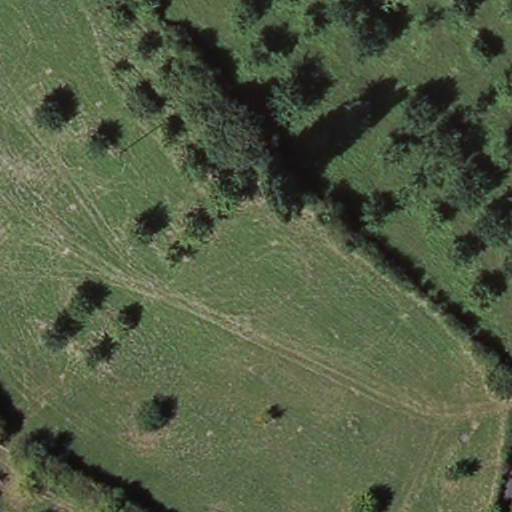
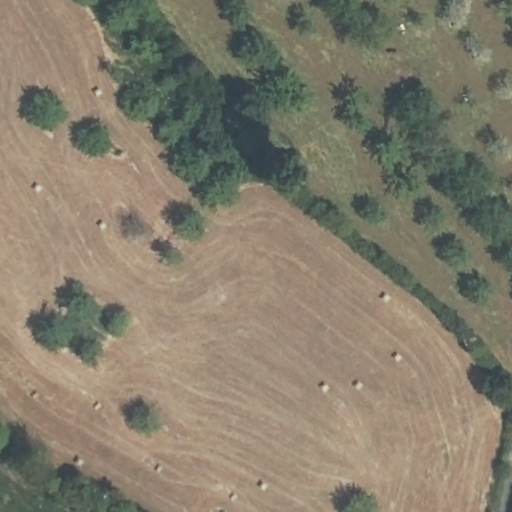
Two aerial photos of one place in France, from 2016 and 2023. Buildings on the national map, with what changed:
[]

